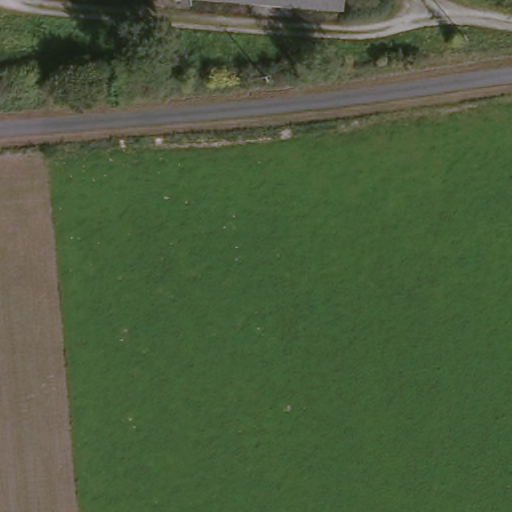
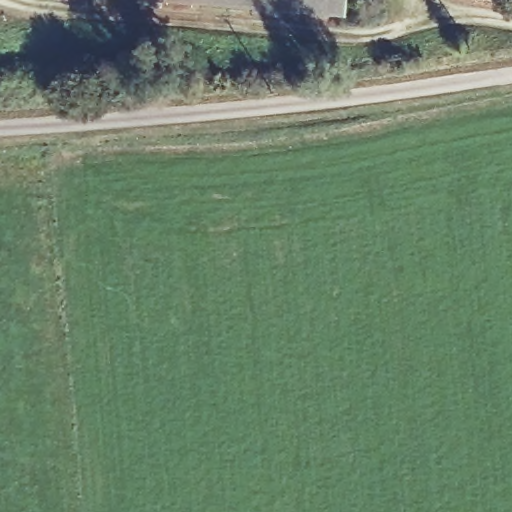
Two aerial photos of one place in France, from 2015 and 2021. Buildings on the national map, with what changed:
unchanged [(333,20),(135,0),(334,0),(333,20)]

